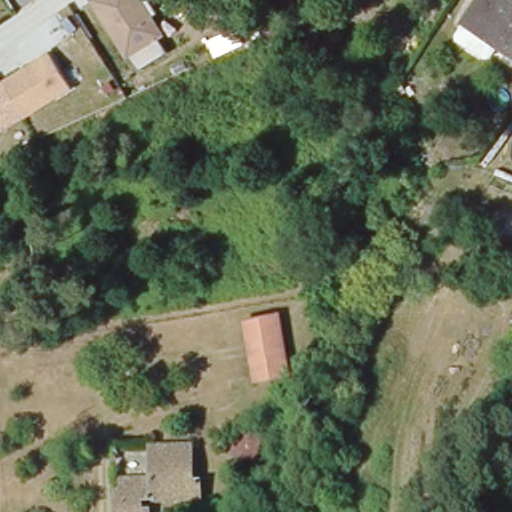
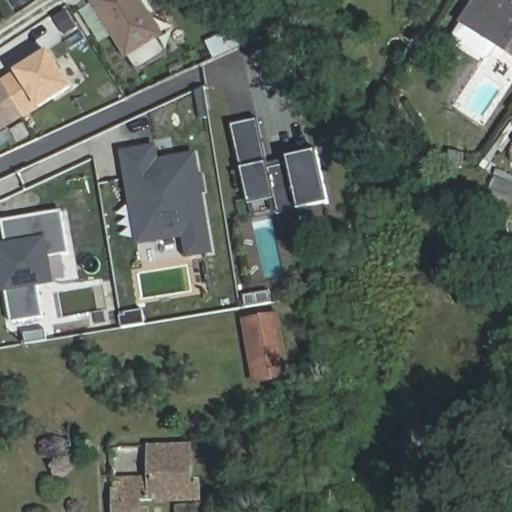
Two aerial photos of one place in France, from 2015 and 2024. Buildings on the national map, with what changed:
unchanged [(165,36),(158,40),(168,55),(137,73),(91,1),(93,0),(152,0),(159,12),(152,16),(165,36)]
unchanged [(493,56),(488,58),(461,40),(460,35),(468,21),(482,0),(512,0),(512,50),(502,44),(493,56)]
new [(234,30),(241,45),(213,59),(206,43),(234,30)]
unchanged [(0,133),(0,83),(50,52),(74,91),(0,133)]
new [(327,203),(277,213),(274,199),(247,205),(229,125),(255,120),(265,163),(284,160),(284,156),(317,151),(327,203)]
new [(211,254),(184,259),(180,239),(136,245),(121,149),(158,143),(161,158),(193,153),(211,254)]
new [(70,253),(50,257),(55,284),(37,287),(43,317),(10,323),(0,264),(0,243),(6,242),(2,220),(63,208),(70,253)]
unchanged [(247,322),(277,317),(287,379),(257,383),(247,322)]
unchanged [(231,428),(260,431),(256,461),(228,457),(231,428)]
unchanged [(191,451),(192,485),(199,485),(200,505),(153,506),(143,507),(144,512),(117,512),(116,494),(116,485),(151,484),(151,452),(191,451)]

